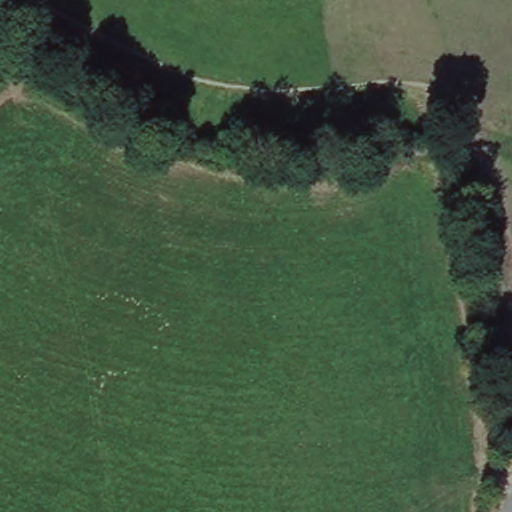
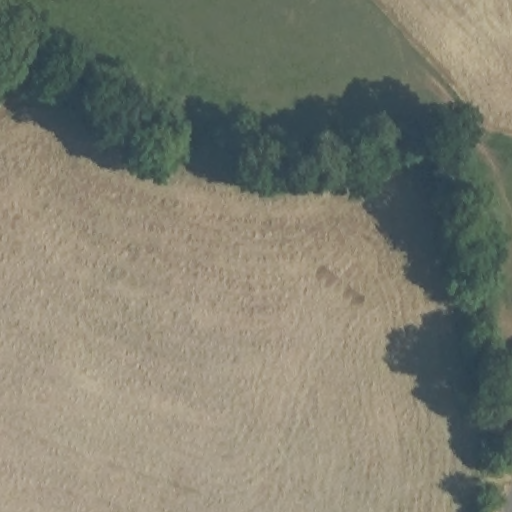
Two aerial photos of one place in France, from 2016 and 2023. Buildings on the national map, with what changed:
[]

